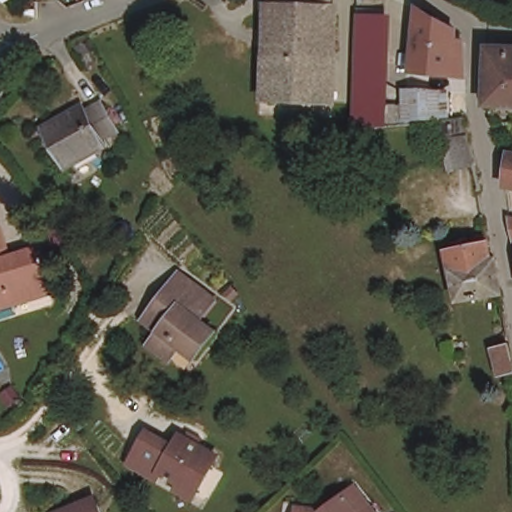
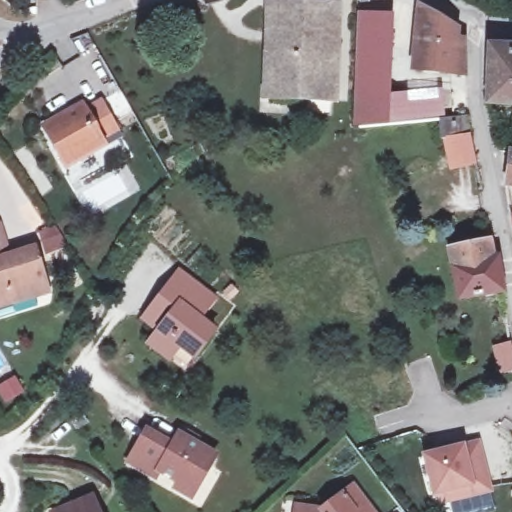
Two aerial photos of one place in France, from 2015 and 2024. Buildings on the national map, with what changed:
unchanged [(265,0),(330,0),(330,14),(265,8),(265,0)]
unchanged [(330,14),(326,101),(259,96),(265,8),(330,14)]
unchanged [(458,75),(407,69),(417,9),(462,34),(458,75)]
unchanged [(352,116),(356,19),(390,18),(387,117),(352,116)]
unchanged [(512,48),(512,108),(486,109),(487,48),(512,48)]
unchanged [(437,115),(405,116),(405,94),(439,94),(437,115)]
unchanged [(100,153),(61,176),(37,138),(76,114),(79,119),(94,110),(112,138),(97,148),(100,153)]
unchanged [(479,164),(447,172),(440,139),(437,139),(434,120),(463,117),(469,135),(479,164)]
unchanged [(456,297),(449,249),(495,242),(502,291),(456,297)]
unchanged [(40,289),(11,300),(0,305),(0,253),(23,244),(40,289)]
unchanged [(218,299),(202,319),(217,331),(195,358),(181,348),(171,359),(151,342),(161,329),(152,322),(146,317),(154,306),(183,270),(218,299)]
unchanged [(499,376),(496,349),(511,347),(512,356),(512,373),(499,376)]
unchanged [(173,483),(155,470),(149,478),(125,461),(133,449),(147,429),(171,446),(179,434),(186,439),(189,434),(196,439),(193,444),(214,459),(190,494),(184,504),(167,492),(173,483)]
new [(425,456),(478,443),(490,489),(444,502),(436,497),(425,456)]
unchanged [(296,509),(322,512),(352,487),(372,512),(295,512),(296,509)]
unchanged [(97,500),(101,512),(68,512),(97,500)]

